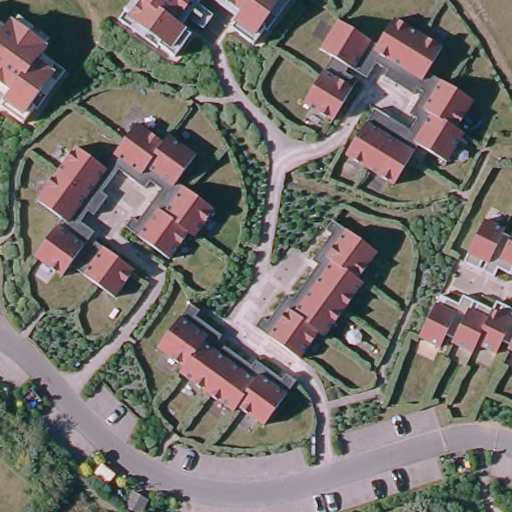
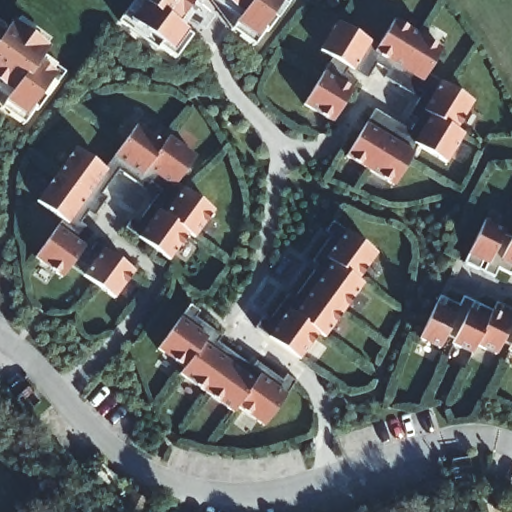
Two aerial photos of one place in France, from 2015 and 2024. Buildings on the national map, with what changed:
unchanged [(185,31),(189,34),(183,42),(189,46),(180,61),(164,50),(162,53),(122,27),(127,20),(134,24),(145,7),(138,2),(134,0),(195,0),(178,27),(185,31)]
unchanged [(271,30),(267,28),(257,44),(242,35),(247,28),(238,23),(241,19),(245,12),(226,0),(290,0),(271,30)]
unchanged [(334,52),(322,45),(336,20),(337,18),(339,16),(340,16),(373,36),(379,40),(381,37),(395,13),(442,41),(439,46),(427,65),(474,93),(457,121),(466,125),(449,154),(421,137),(397,177),(349,149),(377,102),(412,123),(420,111),(412,107),(425,85),(419,82),(416,88),(386,70),(390,64),(378,57),(369,72),(351,61),(347,67),(360,74),(336,115),(307,98),(334,52)]
unchanged [(9,28),(14,22),(49,47),(44,54),(39,61),(56,74),(61,67),(67,72),(39,111),(36,109),(25,124),(11,114),(15,108),(7,102),(10,98),(14,92),(0,82),(0,33),(4,35),(9,28)]
unchanged [(72,259),(64,270),(37,250),(65,213),(39,194),(80,139),(109,159),(140,116),(167,135),(172,127),(199,147),(179,173),(217,201),(197,228),(192,223),(172,250),(128,218),(135,209),(140,213),(163,182),(152,174),(147,181),(122,163),(105,185),(110,189),(96,208),(90,204),(82,215),(96,225),(83,243),(89,247),(97,235),(136,263),(116,290),(72,259)]
unchanged [(257,319),(264,311),(269,315),(290,287),(295,291),(320,257),(314,253),(334,226),(329,221),(335,213),(376,243),(357,270),(362,274),(324,327),(318,323),(299,349),(257,319)]
unchanged [(502,262),(499,270),(467,257),(486,214),(507,223),(505,227),(512,230),(512,266),(502,262)]
unchanged [(189,295),(197,301),(193,307),(221,327),(217,333),(251,357),(255,351),(283,371),(287,365),(296,371),(266,413),(239,394),(235,400),(181,362),(186,356),(159,337),(189,295)]
unchanged [(454,308),(457,300),(488,312),(492,303),(511,311),(512,309),(512,352),(507,350),(509,346),(500,343),(495,355),(474,347),(471,356),(450,347),(451,343),(442,340),(437,353),(417,344),(435,301),(454,308)]

